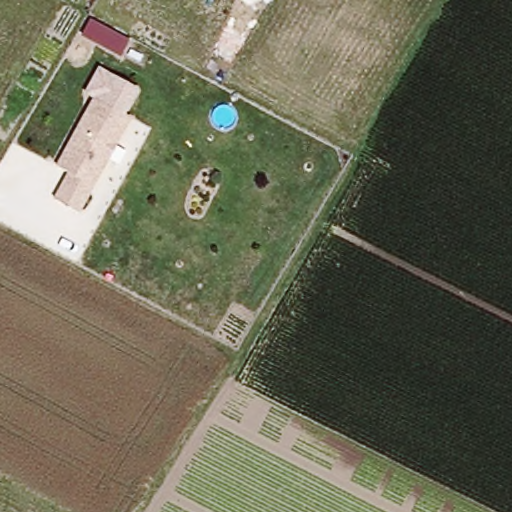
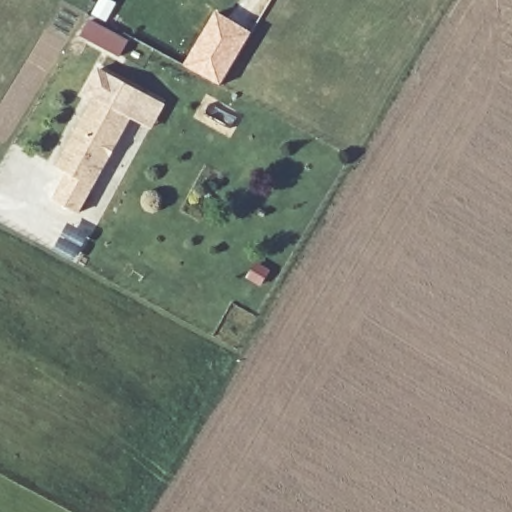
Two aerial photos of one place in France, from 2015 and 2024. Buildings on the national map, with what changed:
new [(216,10),(252,32),(220,85),(184,64),(216,10)]
unchanged [(124,45),(116,60),(78,39),(86,24),(124,45)]
unchanged [(99,68),(137,89),(126,112),(97,96),(86,91),(99,68)]
unchanged [(72,172),(60,166),(97,96),(126,112),(133,116),(82,212),(58,199),(72,172)]

